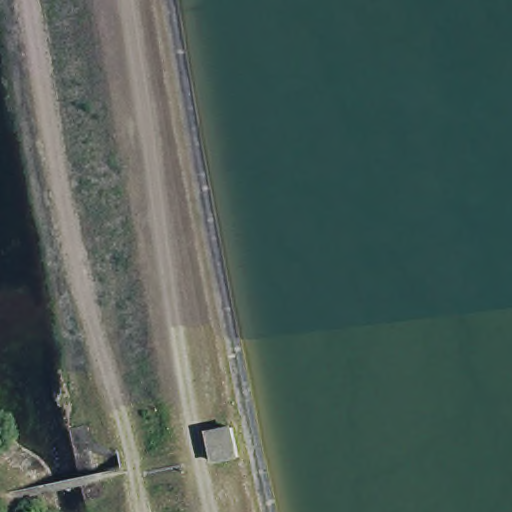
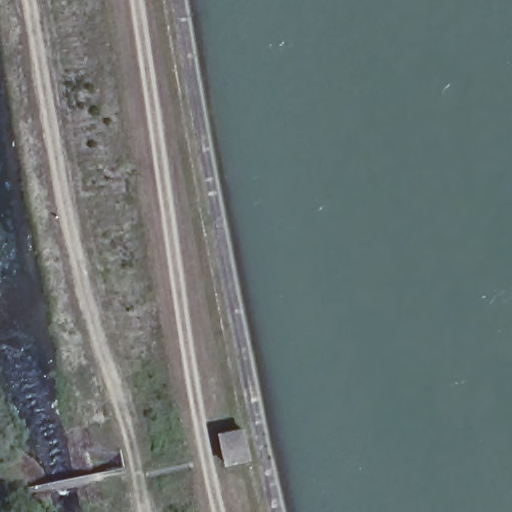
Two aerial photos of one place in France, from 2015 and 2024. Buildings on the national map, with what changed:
unchanged [(222,459),(218,430),(241,426),(246,455),(222,459)]

